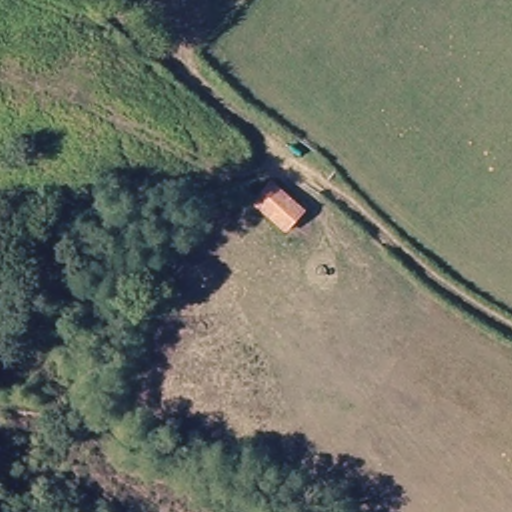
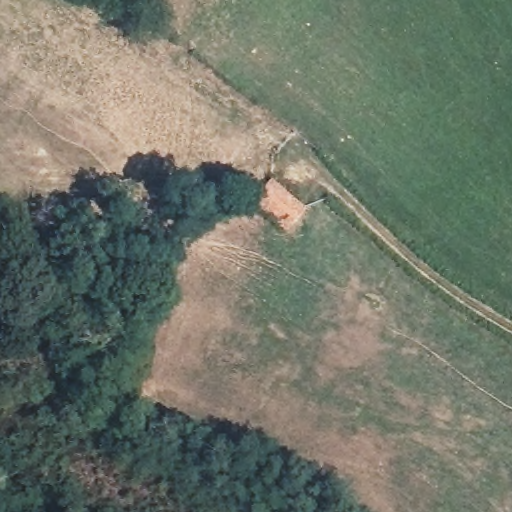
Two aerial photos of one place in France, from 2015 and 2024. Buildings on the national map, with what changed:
unchanged [(269,185),(303,212),(287,234),(252,207),(260,196),(269,185)]

